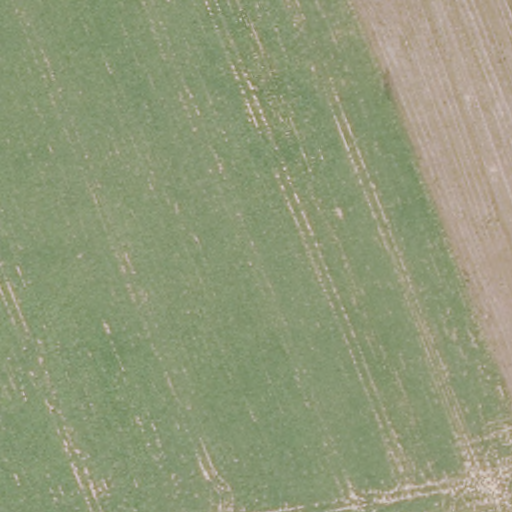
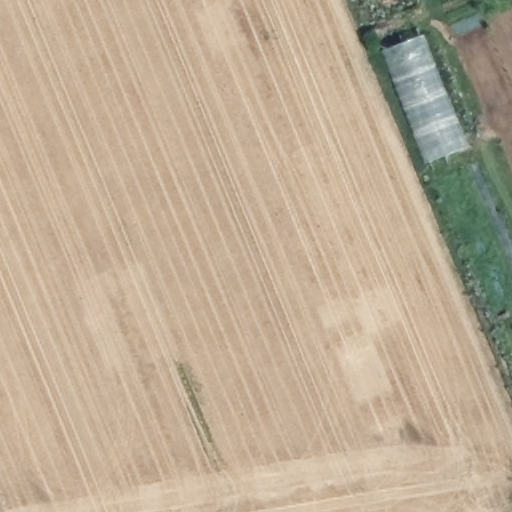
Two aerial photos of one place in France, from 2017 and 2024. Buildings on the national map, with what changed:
new [(385,51),(423,35),(467,149),(428,162),(385,51)]

